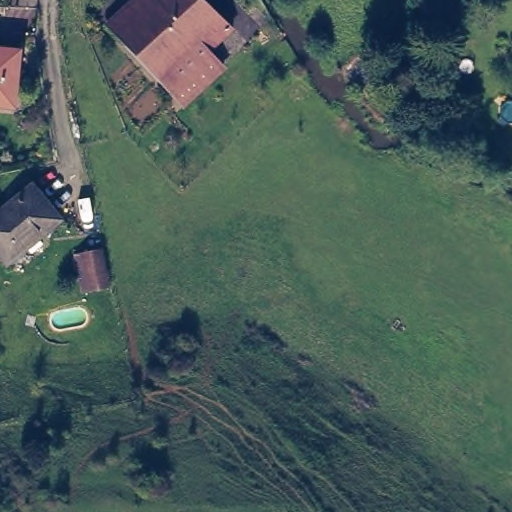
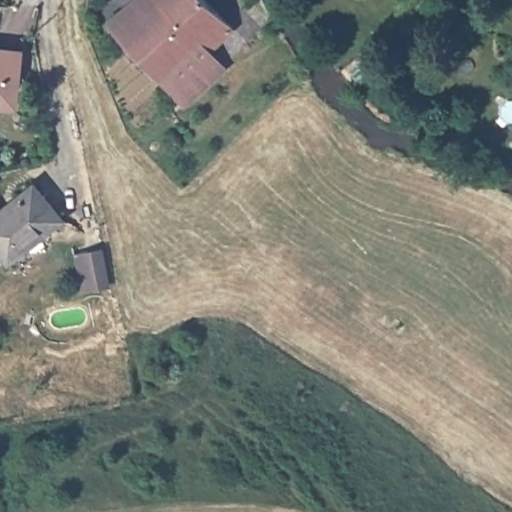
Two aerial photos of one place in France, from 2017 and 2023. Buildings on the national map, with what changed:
unchanged [(128,0),(212,0),(231,20),(207,44),(222,59),(182,100),(118,35),(108,45),(96,33),(128,0)]
unchanged [(17,95),(0,94),(0,44),(21,46),(17,95)]
unchanged [(8,259),(0,248),(0,208),(2,211),(35,184),(60,216),(8,259)]
unchanged [(112,289),(87,294),(78,254),(104,249),(112,289)]

